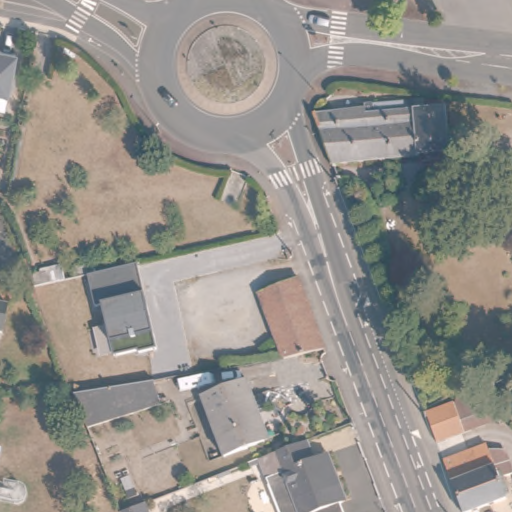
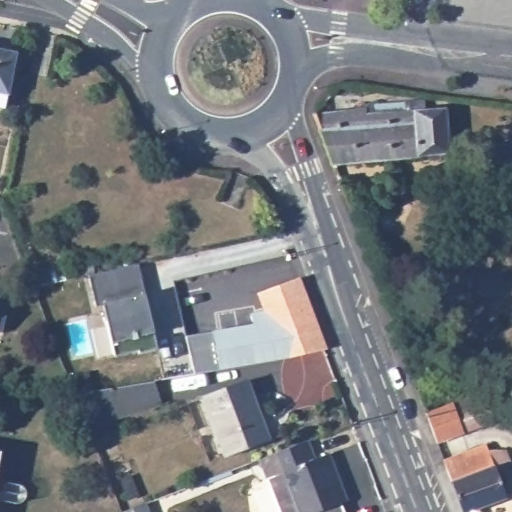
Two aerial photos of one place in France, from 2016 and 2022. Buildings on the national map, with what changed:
unchanged [(20,59),(10,112),(0,110),(0,55),(20,59)]
unchanged [(365,117),(365,112),(429,108),(429,118),(450,117),(453,160),(332,170),(323,147),(312,118),(365,117)]
unchanged [(137,264),(155,347),(138,352),(137,349),(112,354),(101,304),(96,306),(90,275),(137,264)]
unchanged [(262,291),(298,279),(325,351),(287,363),(262,291)]
new [(249,312),(262,309),(256,293),(262,291),(285,357),(217,369),(192,372),(184,335),(211,330),(252,323),(249,312)]
unchanged [(6,308),(0,336),(0,307),(6,308)]
unchanged [(252,381),(264,414),(258,416),(268,443),(230,456),(209,398),(252,381)]
unchanged [(161,405),(92,429),(80,394),(154,382),(161,405)]
unchanged [(448,409),(452,412),(455,411),(457,404),(465,401),(471,407),(486,402),(494,425),(432,447),(421,417),(448,409)]
unchanged [(310,443),(317,462),(329,458),(345,505),(343,506),(345,512),(280,512),(261,461),(310,443)]
unchanged [(508,453),(512,464),(512,476),(499,480),(505,498),(462,512),(443,463),(487,448),(490,453),(508,453)]
unchanged [(134,512),(141,509),(143,512),(134,512)]

